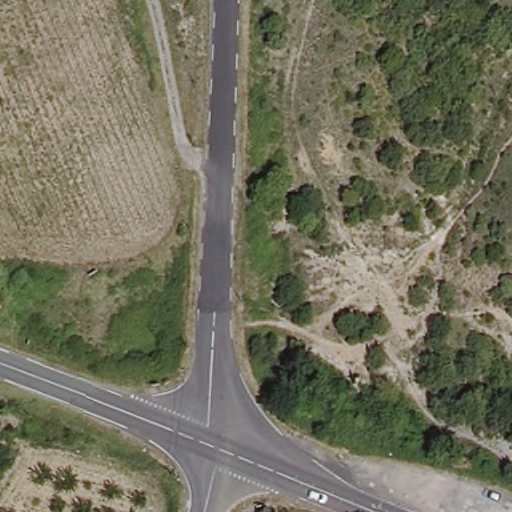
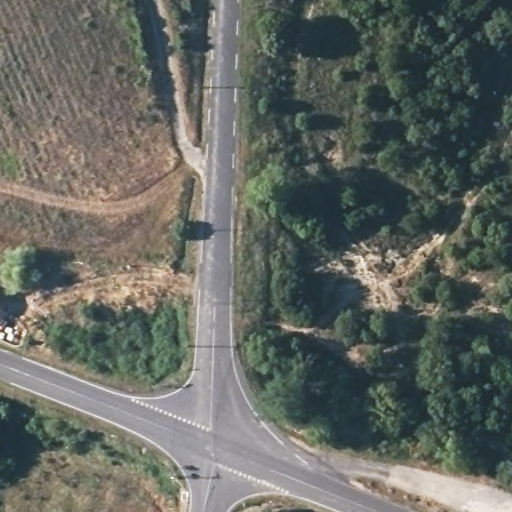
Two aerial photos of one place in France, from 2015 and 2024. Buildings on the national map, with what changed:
unchanged [(0,302),(0,299),(2,299),(0,302)]

